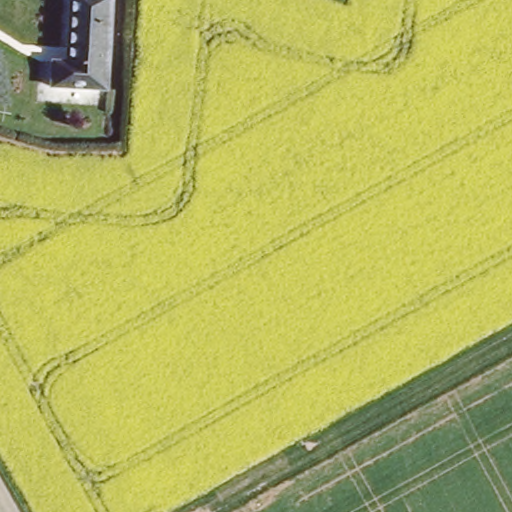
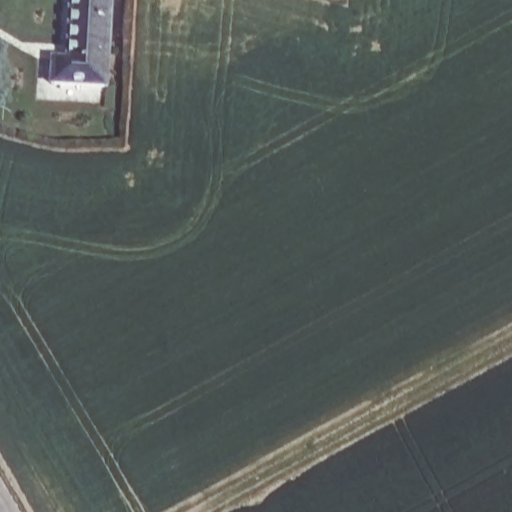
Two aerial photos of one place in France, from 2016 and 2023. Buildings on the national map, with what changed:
unchanged [(55,59),(71,59),(74,0),(117,0),(112,89),(55,86),(55,59)]

